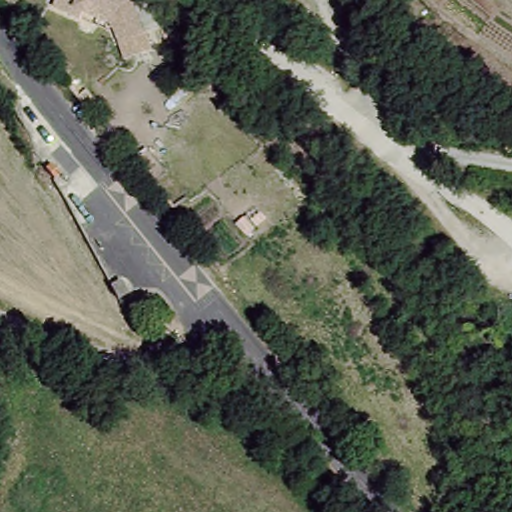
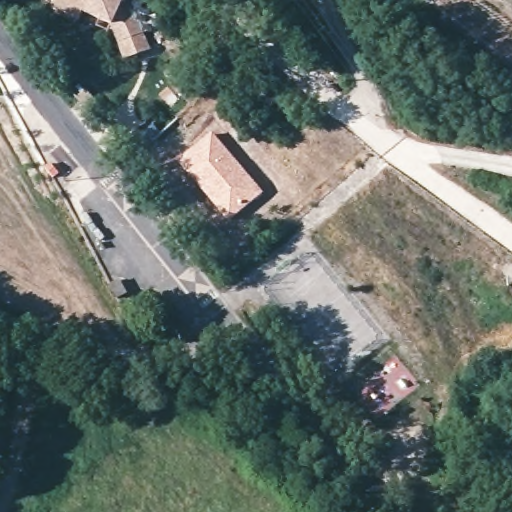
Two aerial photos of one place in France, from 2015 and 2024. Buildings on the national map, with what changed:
unchanged [(110,20),(84,10),(80,17),(52,3),(53,0),(148,0),(160,26),(145,31),(152,51),(126,59),(110,20)]
new [(210,131),(263,192),(228,223),(175,162),(210,131)]
unchanged [(50,168),(42,174),(35,165),(42,160),(50,168)]

